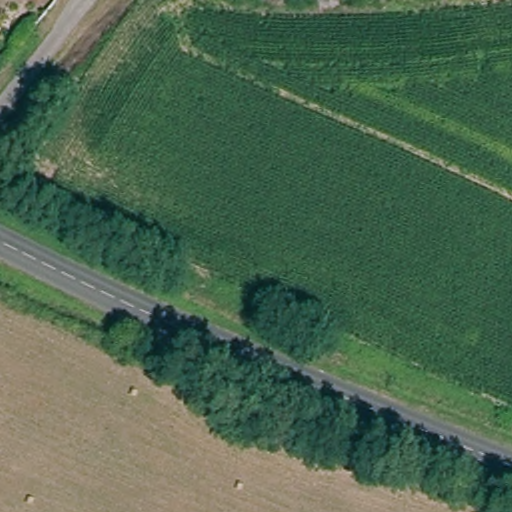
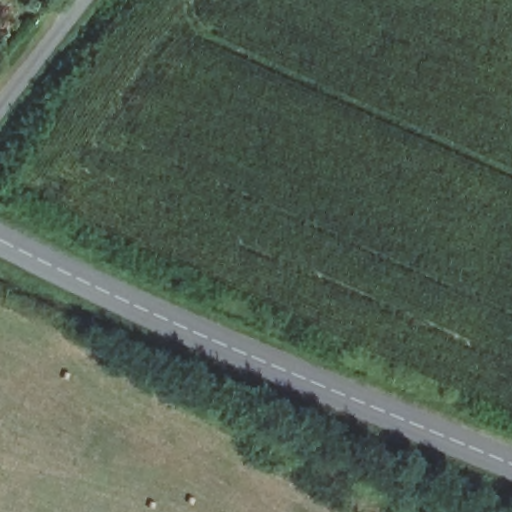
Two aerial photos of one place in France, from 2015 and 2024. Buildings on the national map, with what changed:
[]

